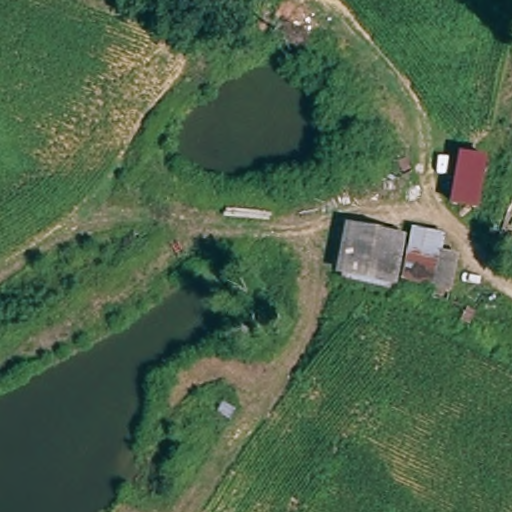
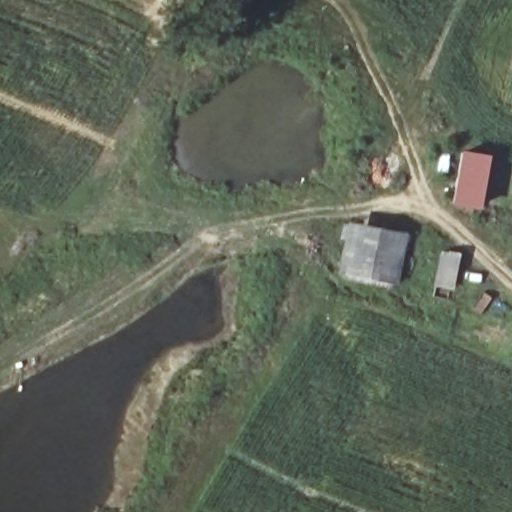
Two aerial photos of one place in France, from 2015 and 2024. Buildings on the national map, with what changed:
unchanged [(491,154),(483,207),(452,203),(462,149),(491,154)]
unchanged [(412,236),(415,226),(448,232),(438,279),(342,262),(347,222),(412,236)]

